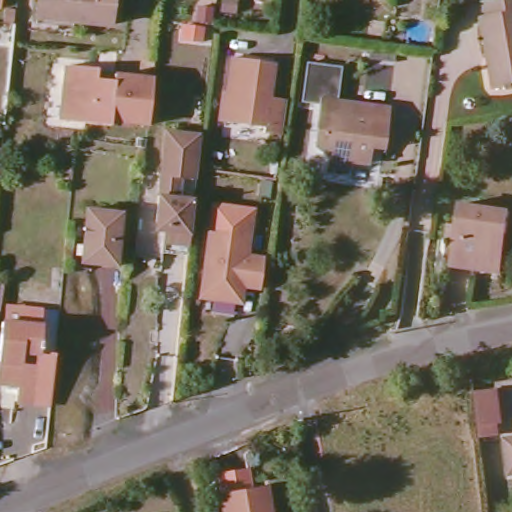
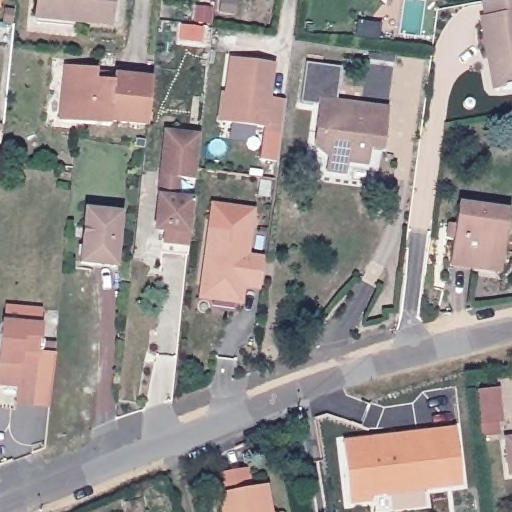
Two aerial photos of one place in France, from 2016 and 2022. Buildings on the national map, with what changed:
unchanged [(0,6),(0,0),(1,0),(0,6)]
unchanged [(32,18),(34,0),(107,0),(105,25),(32,18)]
unchanged [(482,20),(485,19),(482,3),(498,0),(512,0),(512,88),(496,91),(482,20)]
unchanged [(269,135),(270,129),(227,124),(233,59),(276,62),(272,98),(289,100),(285,136),(269,135)]
unchanged [(368,158),(349,156),(347,166),(327,164),(328,147),(322,142),(316,139),(317,126),(320,100),(304,98),(305,93),(307,60),(340,64),(337,97),(388,104),(385,136),(383,145),(370,143),(368,158)]
unchanged [(65,89),(67,66),(99,69),(98,74),(115,75),(120,75),(153,79),(152,94),(149,125),(115,121),(112,121),(112,125),(67,121),(62,121),(65,89)]
unchanged [(160,244),(162,230),(154,220),(165,129),(200,132),(197,165),(195,175),(178,174),(177,194),(193,195),(188,246),(160,244)]
unchanged [(491,272),(452,266),(460,205),(510,212),(508,234),(502,273),(491,272)]
unchanged [(80,262),(85,209),(120,212),(115,266),(80,262)]
unchanged [(267,260),(263,285),(247,282),(240,286),(238,301),(215,299),(203,285),(212,221),(252,226),(248,257),(267,260)]
unchanged [(17,401),(17,384),(0,382),(0,342),(2,321),(40,325),(35,402),(17,401)]
unchanged [(476,432),(470,385),(495,381),(500,429),(476,432)]
new [(370,497),(370,501),(350,504),(342,443),(453,427),(460,485),(370,497)]
unchanged [(505,436),(512,435),(512,473),(509,473),(505,436)]
unchanged [(265,488),(269,512),(224,512),(222,495),(265,488)]

